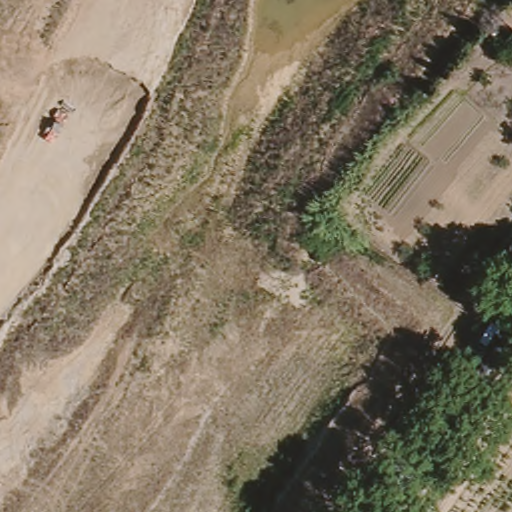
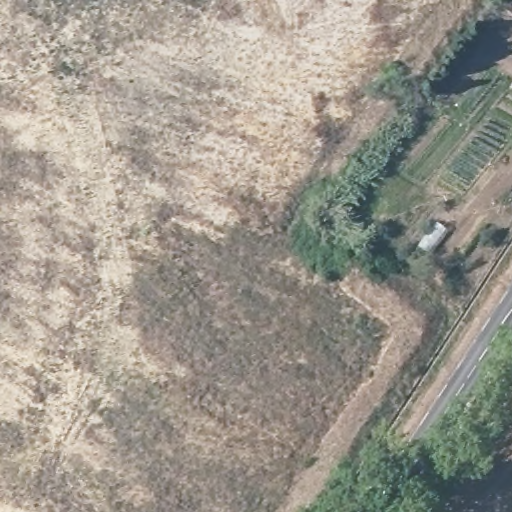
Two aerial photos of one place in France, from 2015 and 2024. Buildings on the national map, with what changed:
unchanged [(490,21),(510,0),(512,0),(512,35),(490,21)]
unchanged [(420,80),(429,66),(439,72),(429,85),(420,80)]

